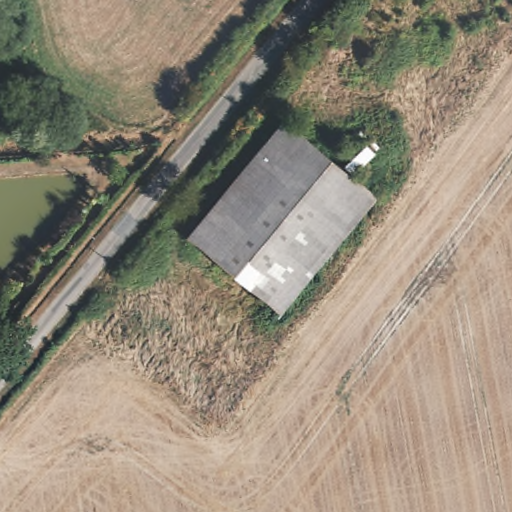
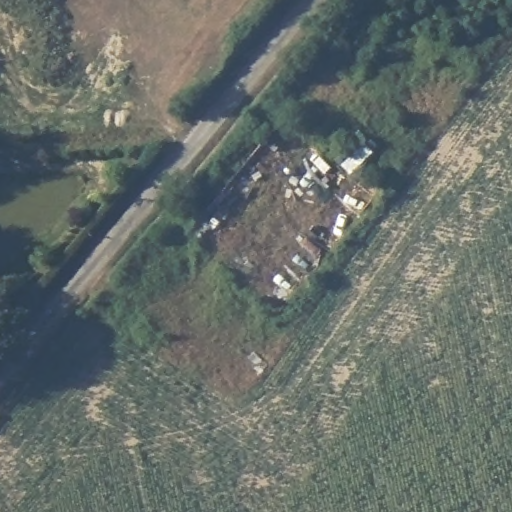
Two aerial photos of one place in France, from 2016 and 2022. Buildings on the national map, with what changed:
demolished [(278,127),(370,201),(275,316),(182,241),(278,127)]

